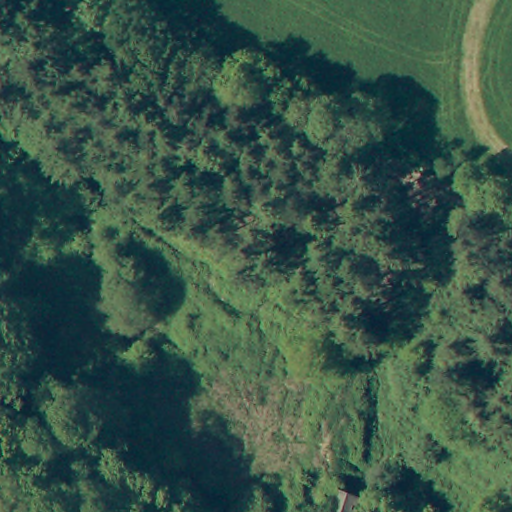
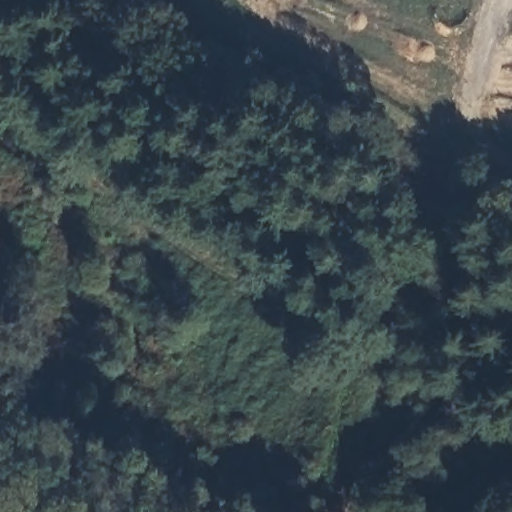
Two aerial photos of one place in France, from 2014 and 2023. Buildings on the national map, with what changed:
unchanged [(373,496),(367,512),(329,512),(339,484),(373,496)]

